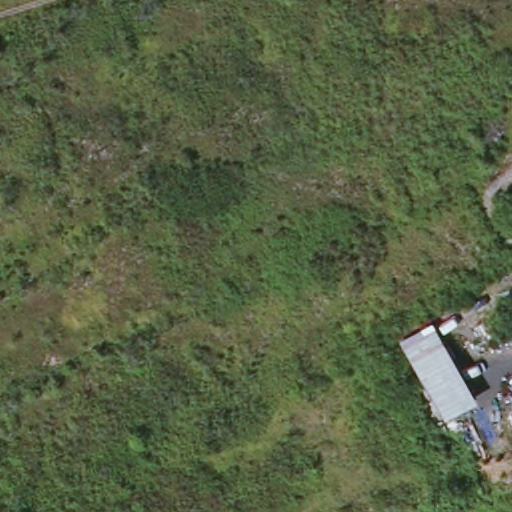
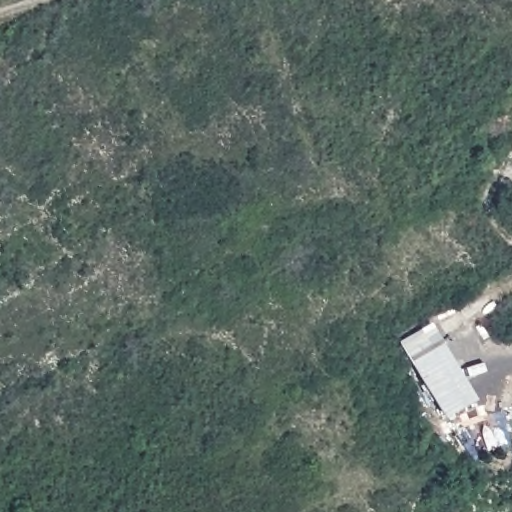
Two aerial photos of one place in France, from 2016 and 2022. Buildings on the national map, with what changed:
unchanged [(478,401),(447,418),(413,360),(446,343),(478,401)]

